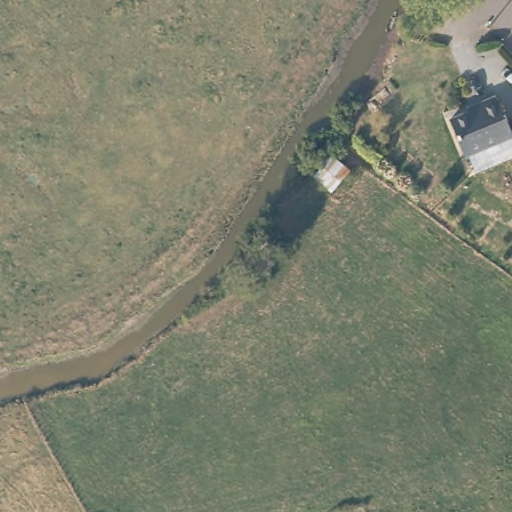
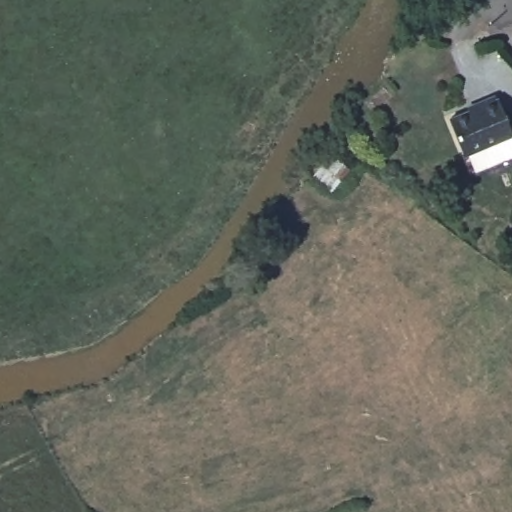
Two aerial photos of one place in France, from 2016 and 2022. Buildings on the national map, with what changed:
unchanged [(499,99),(512,132),(512,137),(465,155),(450,119),(481,107),(480,105),(479,102),(495,96),(496,100),(499,99)]
unchanged [(315,178),(332,155),(353,172),(338,196),(315,178)]

